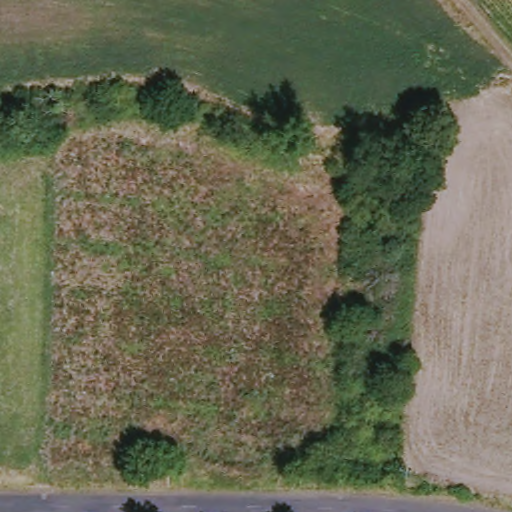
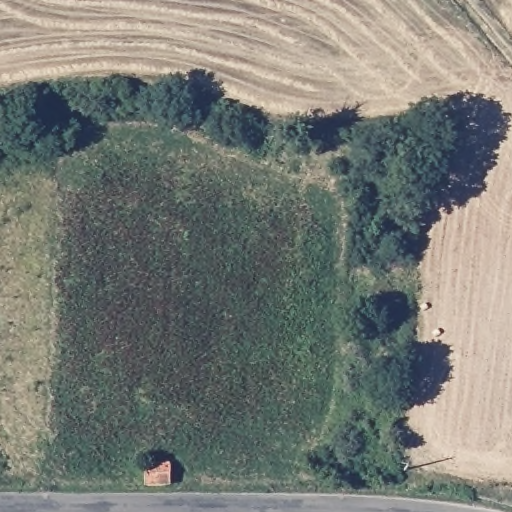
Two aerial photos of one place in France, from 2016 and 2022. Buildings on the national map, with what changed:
unchanged [(171,468),(170,488),(141,488),(142,467),(171,468)]

